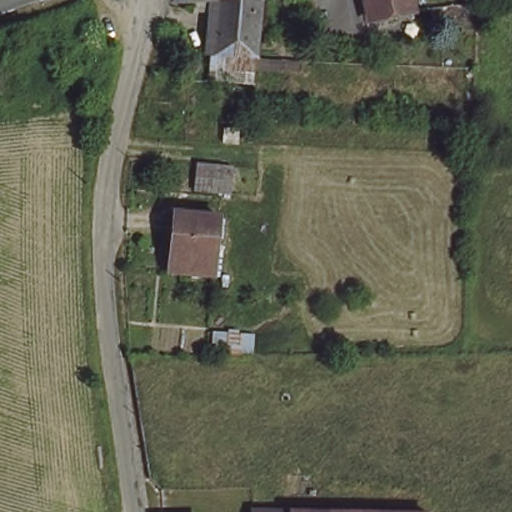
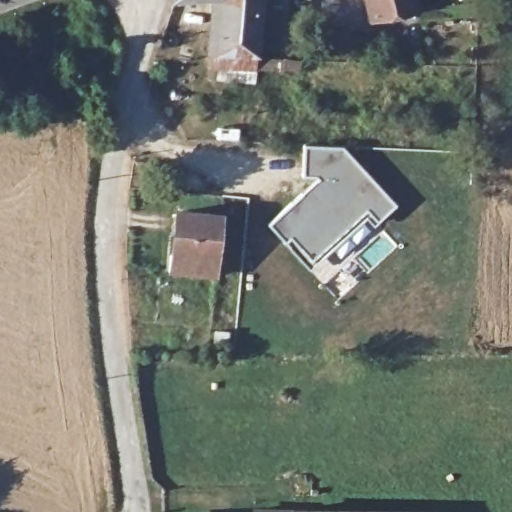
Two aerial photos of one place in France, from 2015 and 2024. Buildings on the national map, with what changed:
unchanged [(219,51),(221,0),(258,0),(253,55),(219,51)]
unchanged [(377,14),(374,0),(416,0),(417,5),(377,14)]
new [(318,180),(314,176),(301,176),(304,144),(342,145),(395,202),(374,226),(364,216),(309,269),(268,224),(318,180)]
unchanged [(172,271),(175,212),(220,215),(213,273),(172,271)]
unchanged [(433,512),(249,512),(248,503),(433,503),(433,512)]

